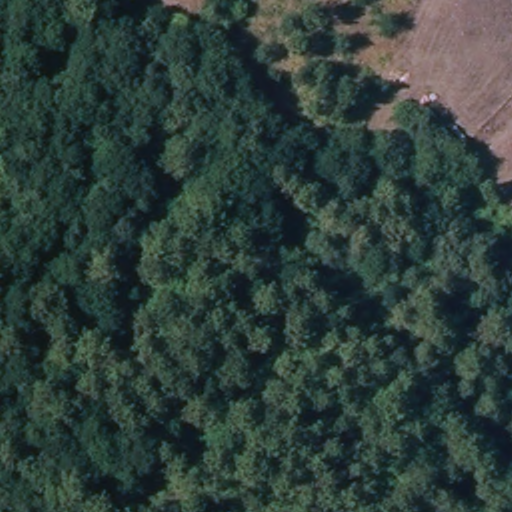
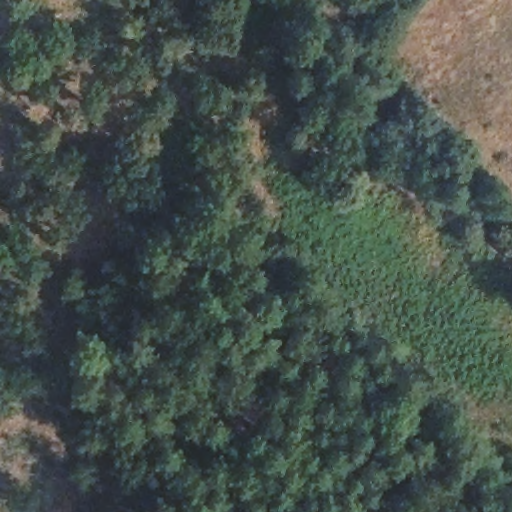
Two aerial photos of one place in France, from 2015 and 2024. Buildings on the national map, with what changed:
[]

